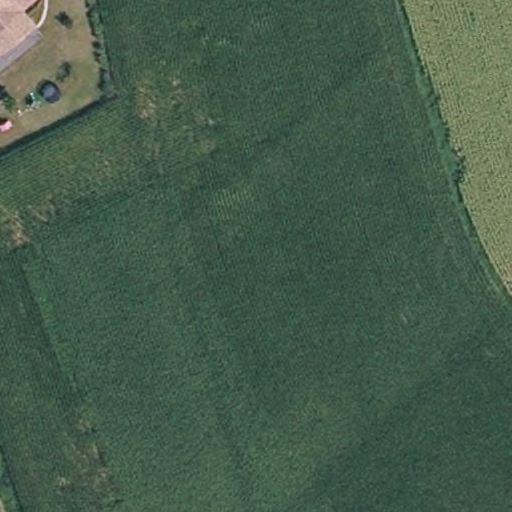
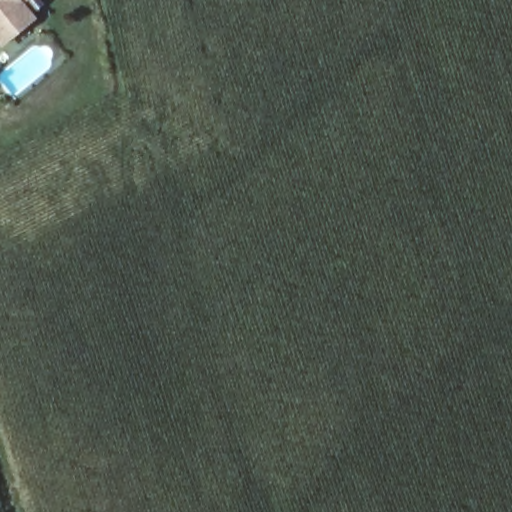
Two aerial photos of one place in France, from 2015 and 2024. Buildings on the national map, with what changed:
unchanged [(44,0),(0,29),(0,0),(44,0)]

